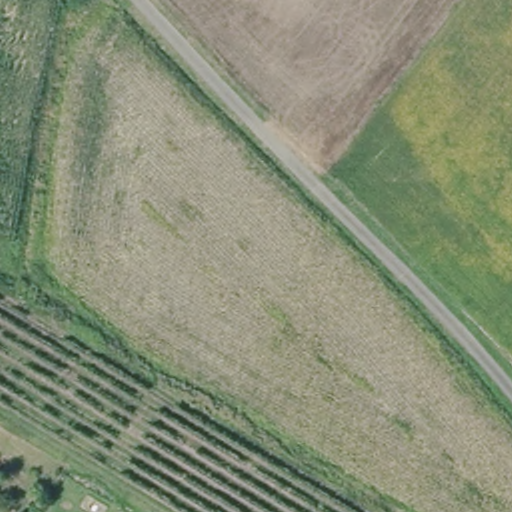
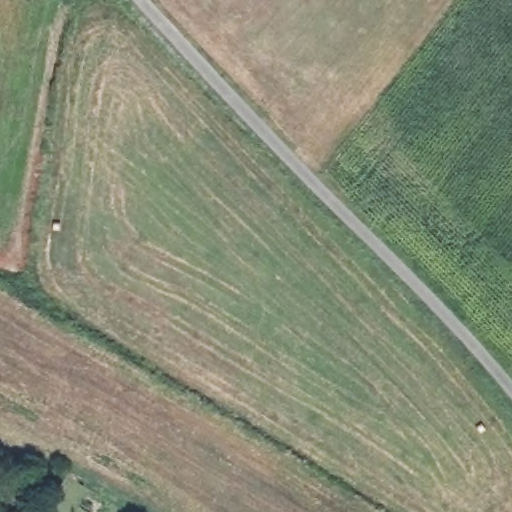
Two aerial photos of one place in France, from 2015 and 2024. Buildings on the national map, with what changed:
[]

